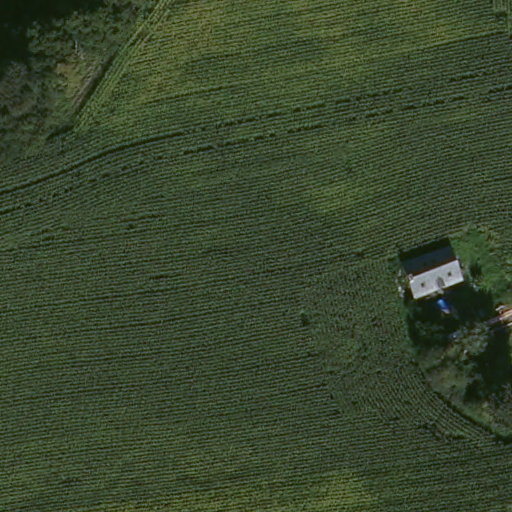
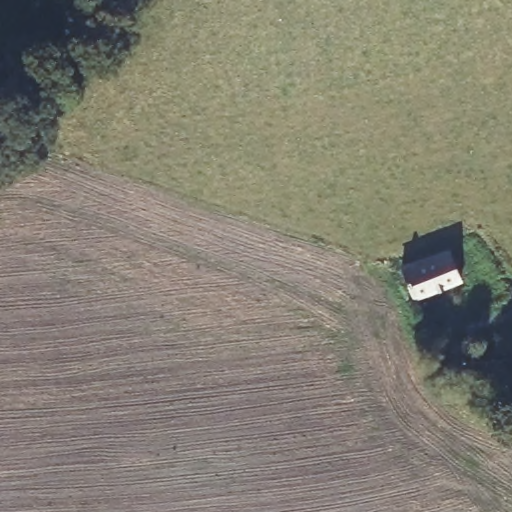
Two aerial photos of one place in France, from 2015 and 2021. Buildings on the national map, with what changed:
unchanged [(448,251),(458,276),(451,280),(412,295),(402,272),(448,251)]

